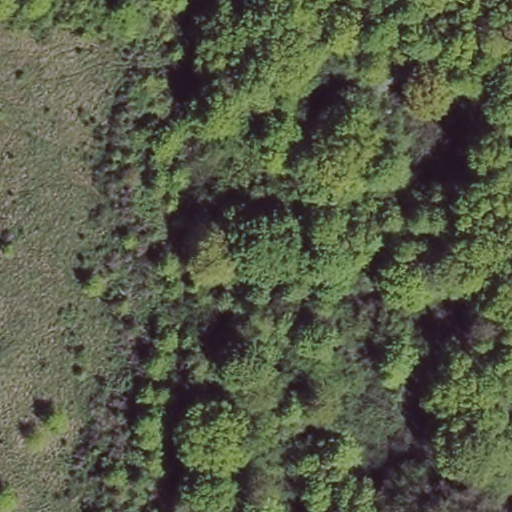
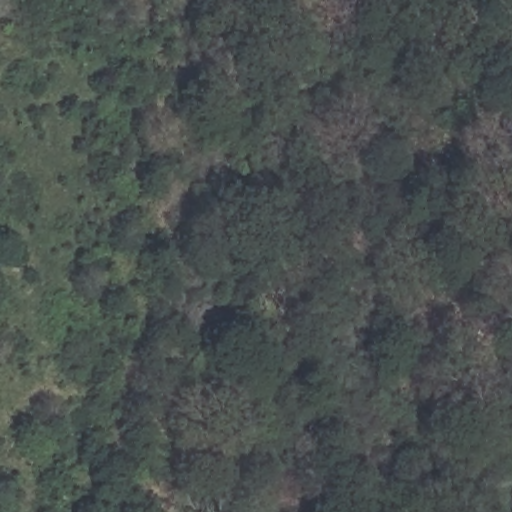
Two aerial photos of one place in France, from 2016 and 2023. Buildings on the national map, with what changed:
[]

